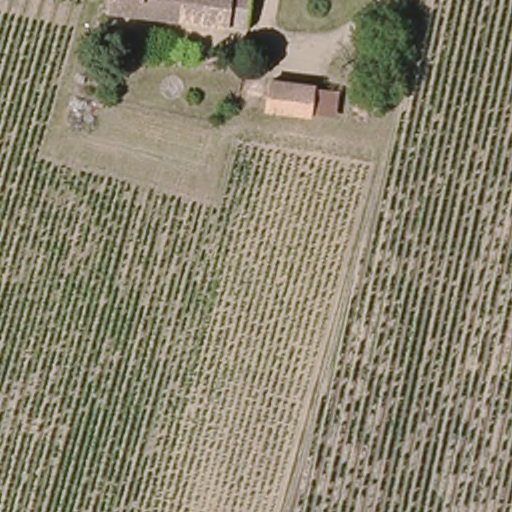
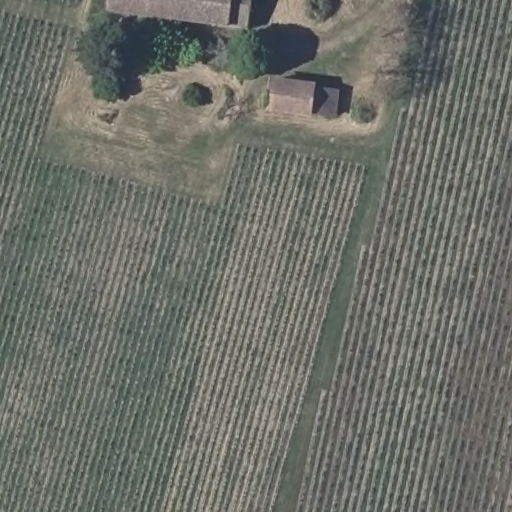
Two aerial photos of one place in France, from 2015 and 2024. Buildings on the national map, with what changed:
unchanged [(107,5),(108,0),(254,0),(245,35),(107,5)]
unchanged [(335,119),(314,115),(279,106),(266,104),(274,75),(321,86),(342,91),(335,119)]

